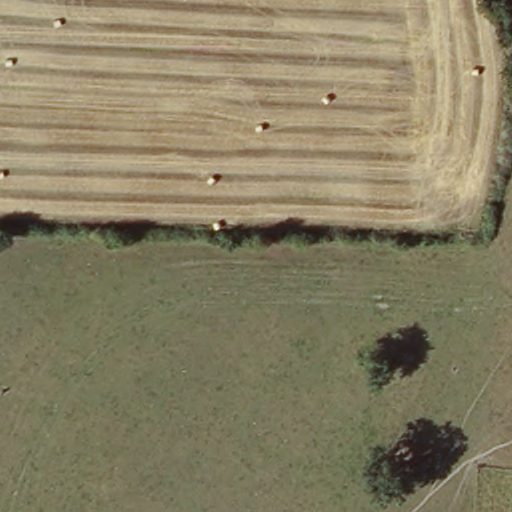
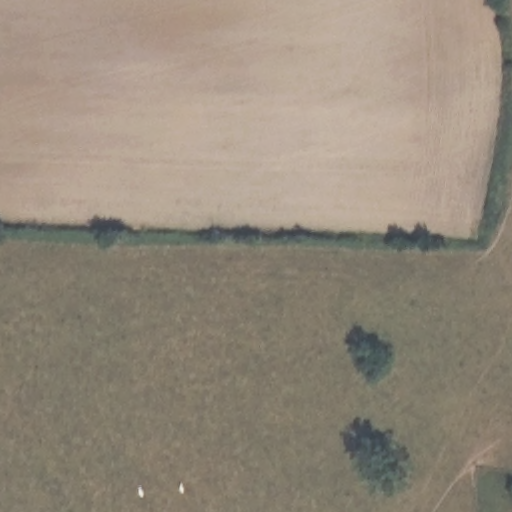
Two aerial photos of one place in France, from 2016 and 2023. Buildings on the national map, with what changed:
[]

